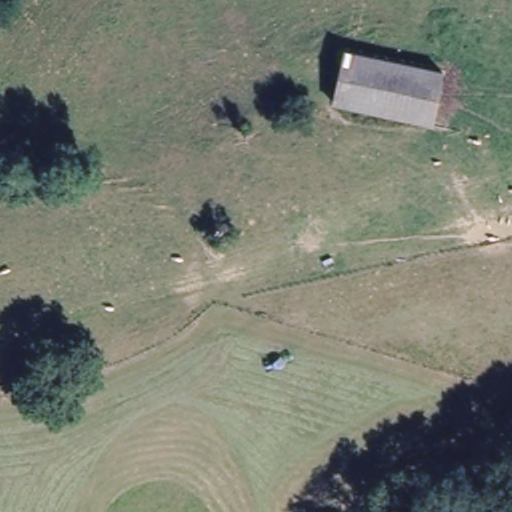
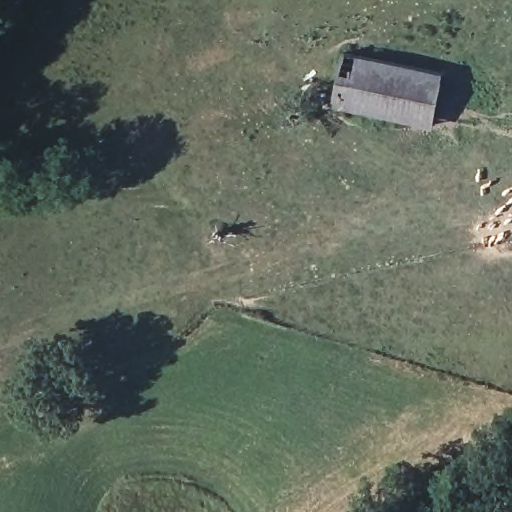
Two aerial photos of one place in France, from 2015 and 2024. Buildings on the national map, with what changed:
unchanged [(432,119),(332,99),(342,45),(444,64),(432,119)]

